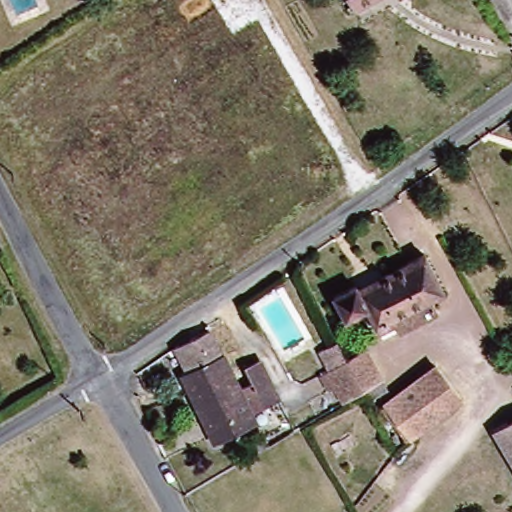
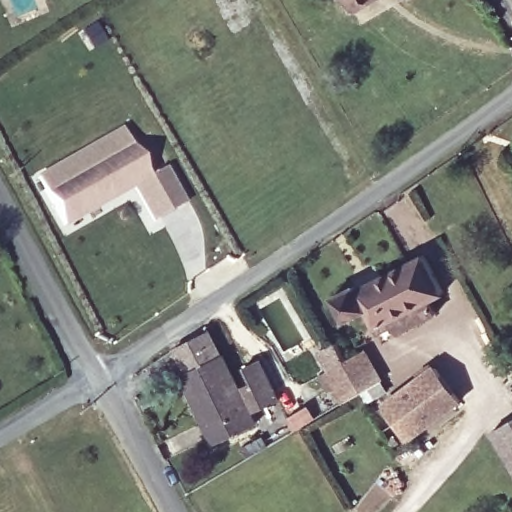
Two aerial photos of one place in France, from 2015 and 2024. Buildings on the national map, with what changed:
unchanged [(348,0),(377,0),(356,13),(348,0)]
new [(149,177),(167,166),(188,204),(153,223),(133,188),(65,228),(36,178),(121,130),(149,177)]
unchanged [(442,286),(422,297),(429,312),(405,324),(398,311),(373,323),(367,310),(348,320),(335,298),(355,287),(385,270),(423,249),(442,286)]
unchanged [(180,376),(184,373),(171,345),(204,331),(218,360),(222,359),(237,395),(251,388),(244,368),(263,361),(268,379),(280,401),(247,415),(251,427),(214,443),(180,376)]
unchanged [(336,392),(325,396),(316,378),(327,372),(317,351),(333,341),(344,361),(365,350),(382,383),(361,394),(343,407),(336,392)]
unchanged [(432,369),(457,401),(407,437),(383,405),(432,369)]
unchanged [(512,465),(491,435),(512,420),(512,465)]

